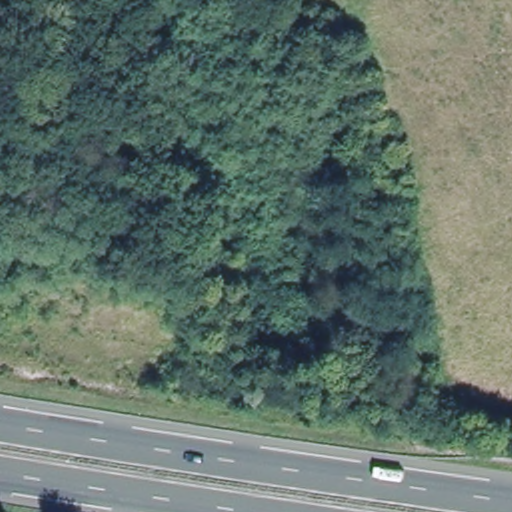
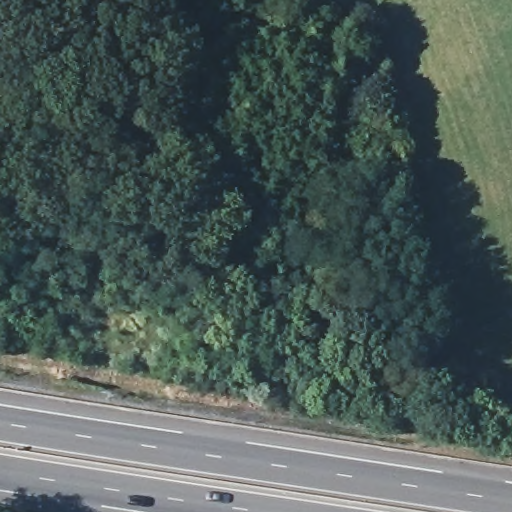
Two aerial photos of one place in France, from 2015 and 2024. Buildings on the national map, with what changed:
[]

